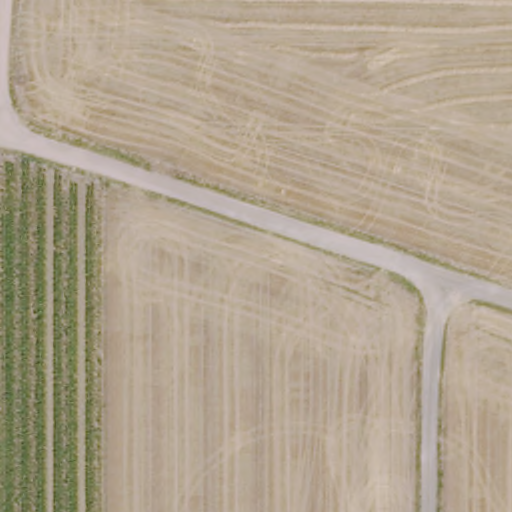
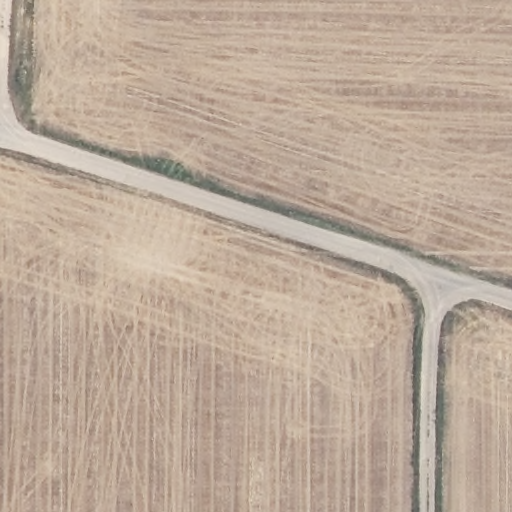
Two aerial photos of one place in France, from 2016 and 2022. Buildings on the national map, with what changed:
[]

